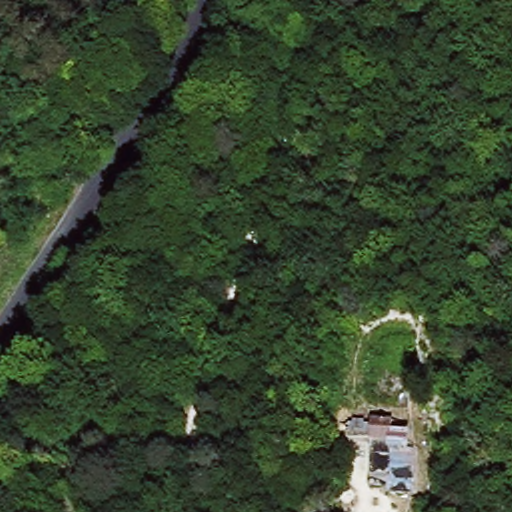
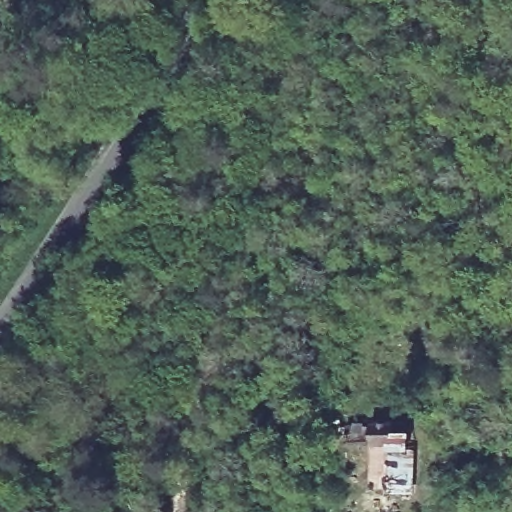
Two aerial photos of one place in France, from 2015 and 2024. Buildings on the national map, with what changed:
unchanged [(372,431),(371,443),(392,444),(394,451),(411,453),(409,497),(368,495),(365,449),(344,449),(345,431),(372,431)]

